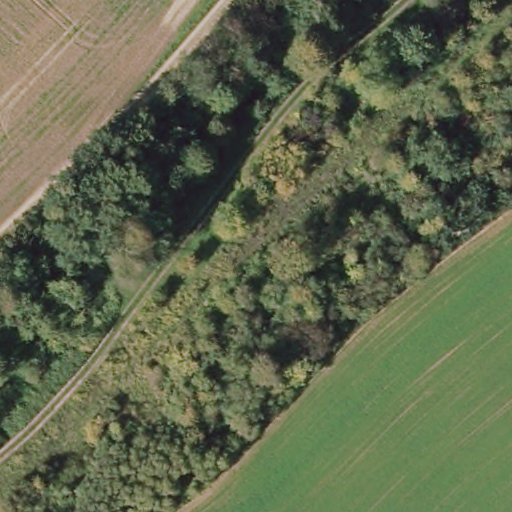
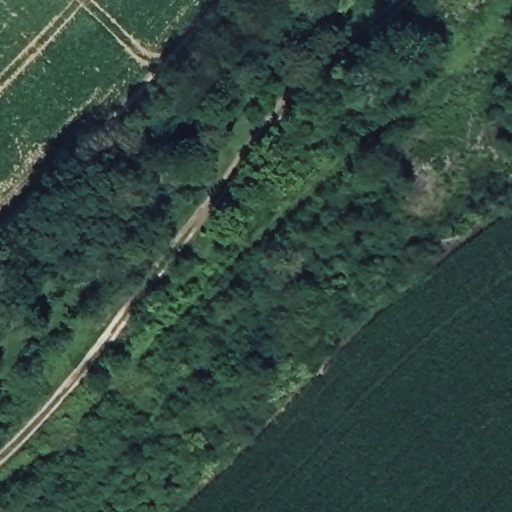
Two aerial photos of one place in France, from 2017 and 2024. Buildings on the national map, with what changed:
unchanged [(175,104),(203,75),(217,92),(190,120),(175,104)]

